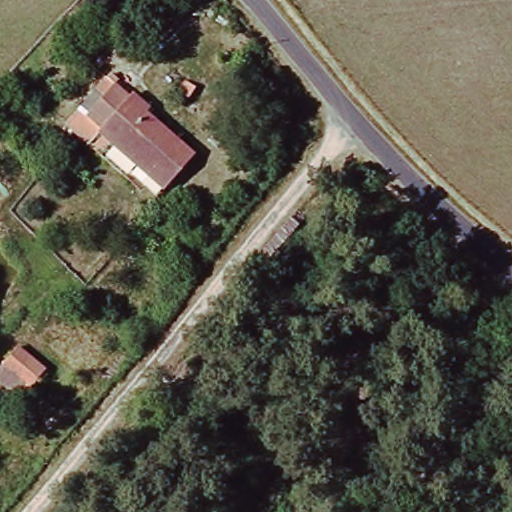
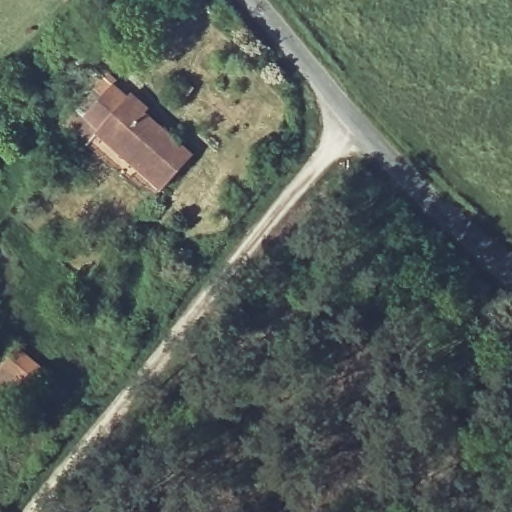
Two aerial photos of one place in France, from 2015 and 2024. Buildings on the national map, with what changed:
unchanged [(87,138),(100,122),(83,108),(101,86),(94,80),(103,68),(128,90),(132,84),(150,99),(144,106),(190,145),(155,186),(130,165),(122,167),(87,138)]
unchanged [(0,376),(0,352),(3,348),(29,369),(14,387),(0,376)]

